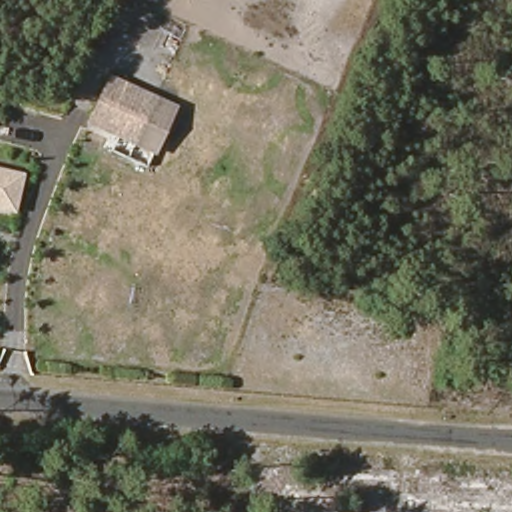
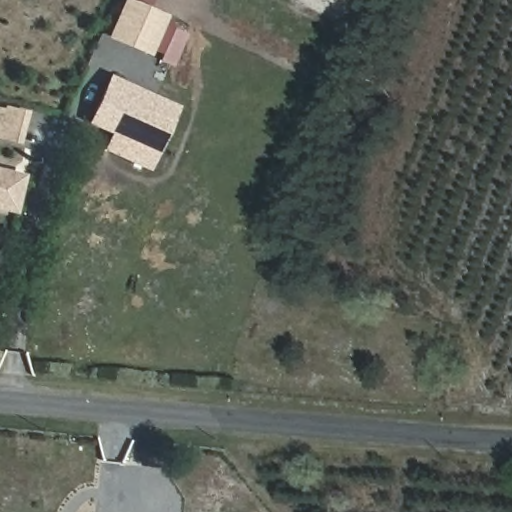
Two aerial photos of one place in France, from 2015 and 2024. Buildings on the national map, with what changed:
new [(171,66),(159,61),(162,55),(152,51),(150,55),(107,37),(122,0),(153,0),(150,7),(168,15),(164,23),(186,32),(171,66)]
unchanged [(135,144),(112,135),(113,121),(91,114),(107,78),(154,99),(135,144)]
unchanged [(154,99),(180,109),(159,154),(135,144),(154,99)]
unchanged [(20,213),(0,209),(0,167),(28,173),(20,213)]

